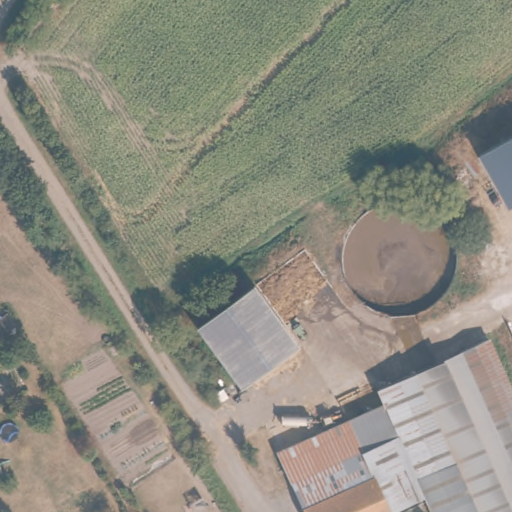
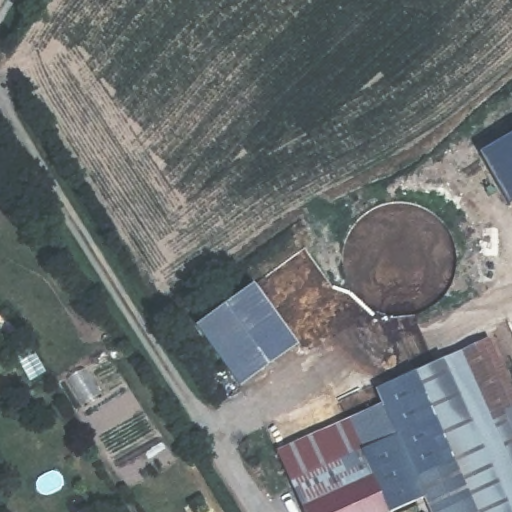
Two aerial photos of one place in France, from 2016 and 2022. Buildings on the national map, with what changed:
unchanged [(480,155),(512,136),(512,204),(510,205),(480,155)]
unchanged [(295,351),(238,389),(229,376),(192,325),(248,286),(281,331),(295,351)]
unchanged [(497,346),(512,382),(512,512),(501,512),(436,368),(459,360),(497,346)]
unchanged [(501,512),(470,512),(467,505),(454,512),(425,512),(421,501),(419,502),(392,512),(304,512),(276,449),(384,405),(378,390),(408,379),(419,374),(436,368),(501,512)]
unchanged [(470,512),(454,512),(467,505),(470,512)]

